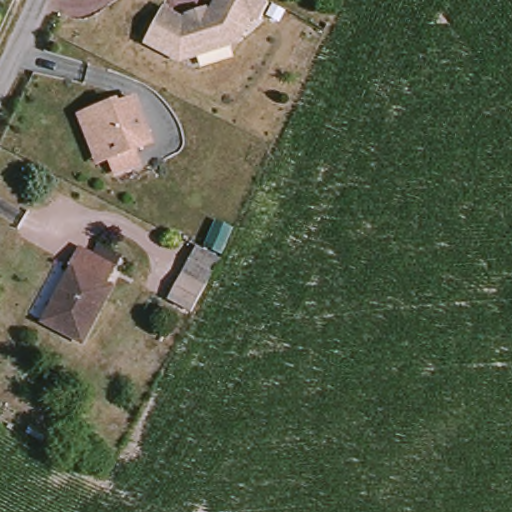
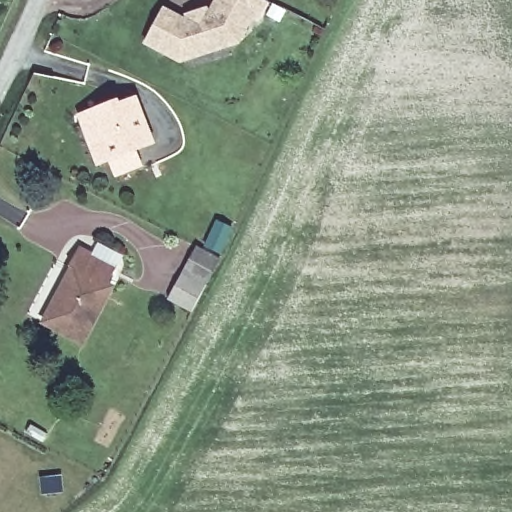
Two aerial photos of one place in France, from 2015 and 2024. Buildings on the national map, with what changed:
unchanged [(145,43),(164,10),(185,21),(189,20),(187,15),(205,9),(207,14),(212,12),(219,0),(260,0),(269,5),(260,21),(251,17),(238,43),(235,44),(180,61),(145,43)]
unchanged [(81,116),(92,112),(117,103),(119,107),(131,101),(135,100),(144,122),(152,144),(134,150),(140,165),(115,174),(110,160),(99,164),(81,116)]
unchanged [(107,286),(112,289),(82,344),(44,323),(71,270),(68,268),(79,249),(116,270),(107,286)]
unchanged [(220,261),(192,315),(169,302),(196,249),(220,261)]

